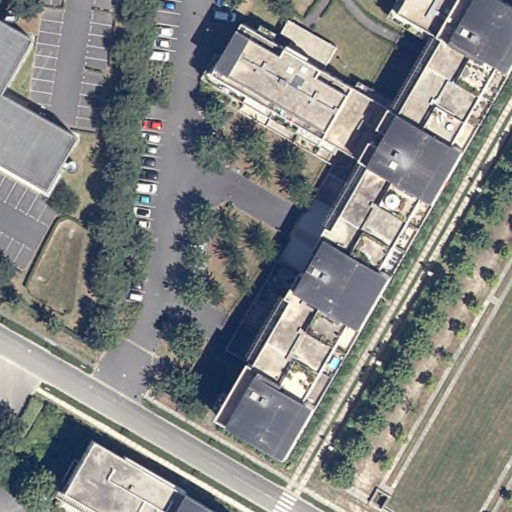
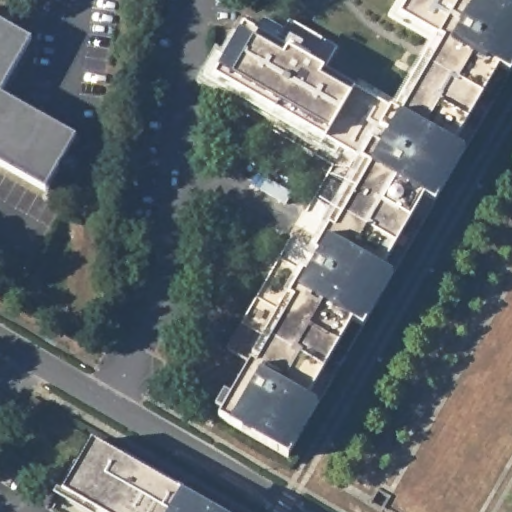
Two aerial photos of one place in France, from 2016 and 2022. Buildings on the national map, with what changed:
unchanged [(246,366),(251,369),(289,303),(284,300),(298,276),(303,280),(368,169),(211,77),(241,25),(285,50),(296,32),(333,54),(322,72),(398,116),(442,41),(398,15),(407,0),(498,0),(512,8),(512,70),(283,462),(214,421),(246,366)]
unchanged [(26,42),(0,88),(0,27),(26,42)]
unchanged [(71,140),(40,195),(0,171),(0,100),(71,140)]
unchanged [(86,438),(214,512),(51,512),(46,509),(86,438)]

